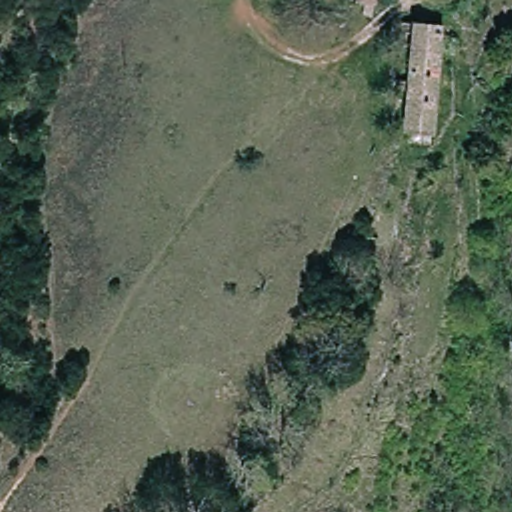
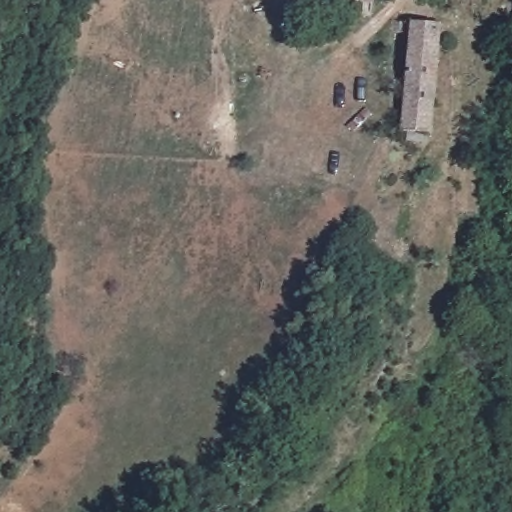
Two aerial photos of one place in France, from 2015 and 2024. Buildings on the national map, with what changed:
unchanged [(446,24),(432,136),(401,130),(412,21),(446,24)]

